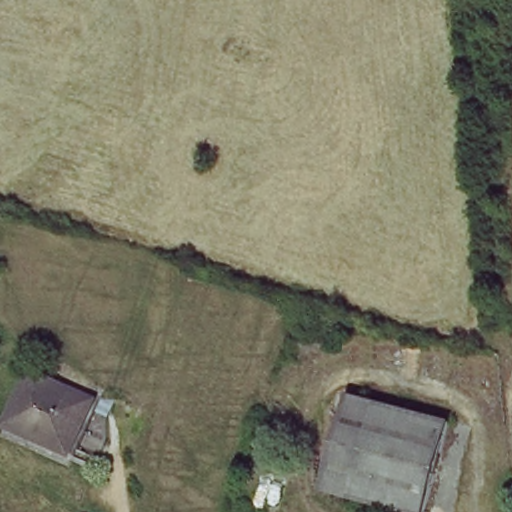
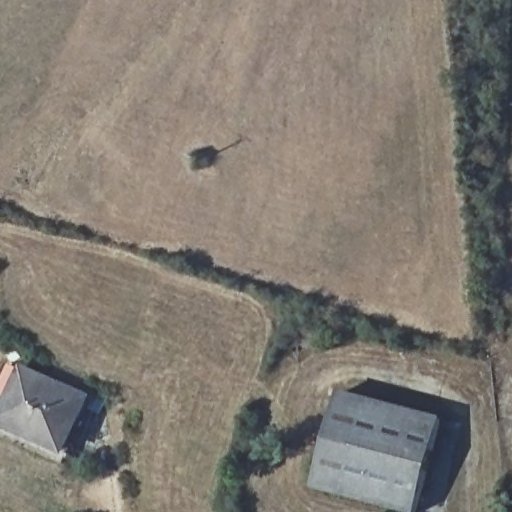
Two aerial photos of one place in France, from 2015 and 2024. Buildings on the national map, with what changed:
unchanged [(24,366),(89,393),(65,453),(38,442),(42,433),(3,416),(24,366)]
unchanged [(338,390),(443,421),(418,512),(399,512),(311,485),(338,390)]

